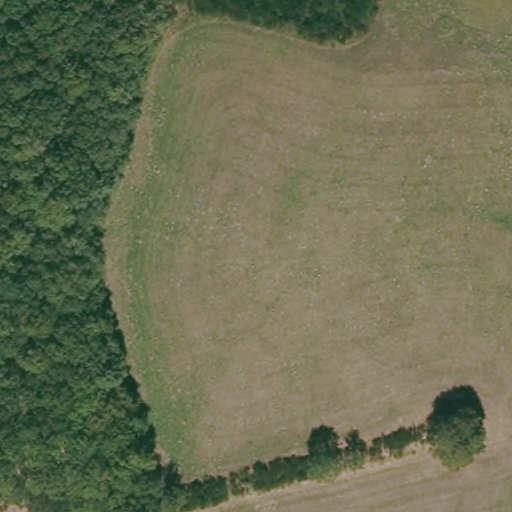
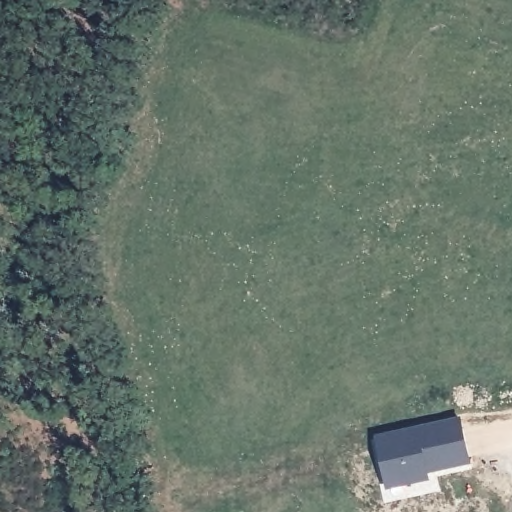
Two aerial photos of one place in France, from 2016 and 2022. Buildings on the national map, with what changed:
new [(472,465),(427,474),(429,480),(387,490),(375,436),(460,417),(472,465)]

